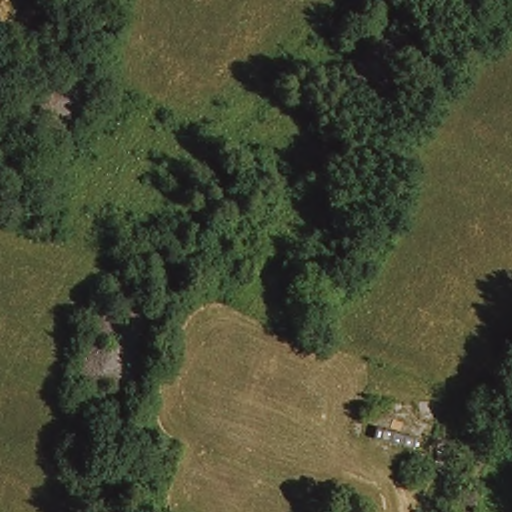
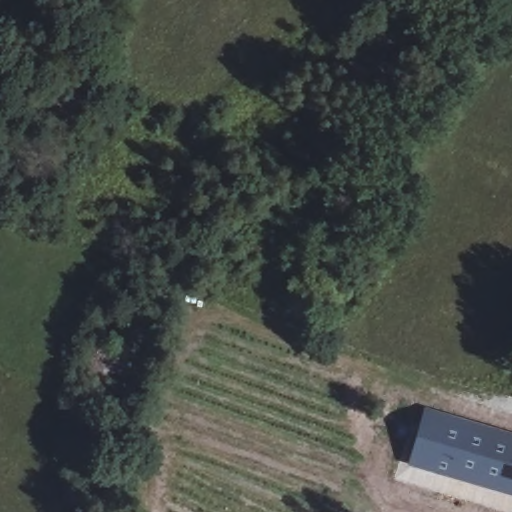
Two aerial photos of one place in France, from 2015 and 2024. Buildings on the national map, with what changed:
new [(422,412),(512,439),(512,491),(410,462),(422,412)]

